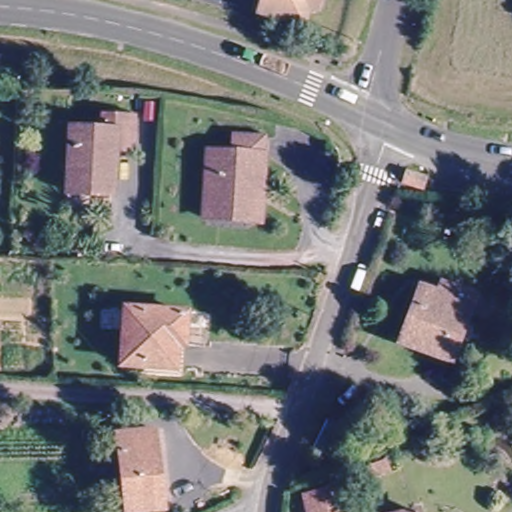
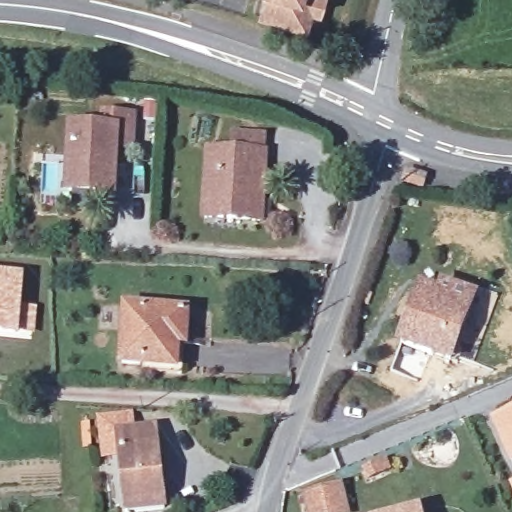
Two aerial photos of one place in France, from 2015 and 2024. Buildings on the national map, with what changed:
unchanged [(309,18),(304,34),(247,14),(250,0),(326,0),(323,19),(309,18)]
unchanged [(126,143),(108,142),(106,191),(64,189),(64,125),(94,127),(95,111),(127,112),(126,143)]
unchanged [(253,215),(204,214),(205,150),(231,150),(231,132),(264,133),(263,183),(262,215),(253,215)]
new [(24,305),(38,306),(35,336),(0,335),(0,273),(26,274),(24,305)]
unchanged [(447,362),(398,342),(418,287),(436,294),(439,285),(472,297),(447,362)]
unchanged [(185,312),(184,345),(175,345),(174,368),(120,365),(123,308),(185,312)]
new [(491,416),(512,409),(512,462),(491,416)]
unchanged [(114,433),(153,429),(163,506),(125,511),(114,433)]
unchanged [(338,512),(306,512),(302,497),(336,488),(342,511),(338,512)]
unchanged [(418,506),(419,512),(393,512),(418,506)]

